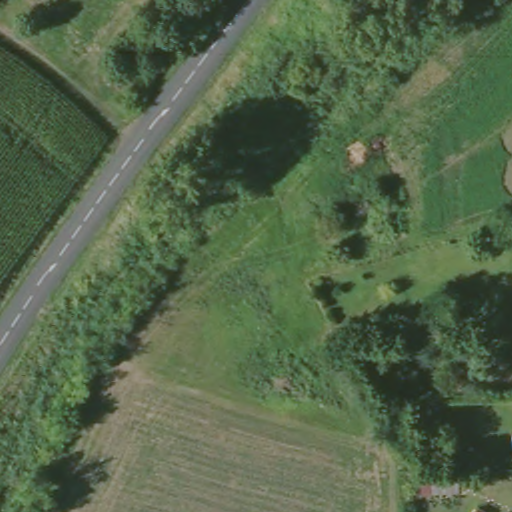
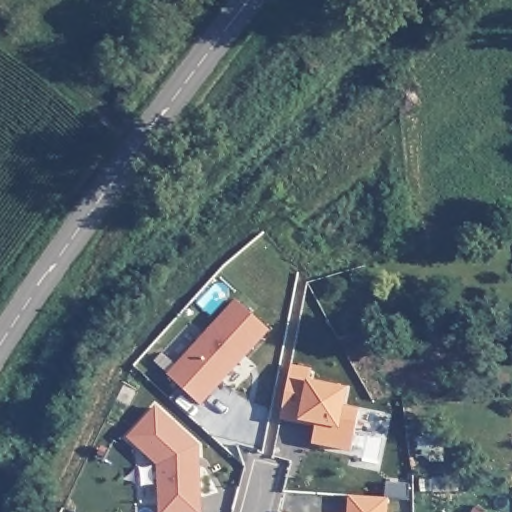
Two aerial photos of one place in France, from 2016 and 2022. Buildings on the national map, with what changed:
new [(235,299),(268,330),(200,405),(168,374),(235,299)]
unchanged [(441,333),(444,360),(430,361),(428,334),(441,333)]
unchanged [(456,378),(470,378),(471,394),(456,395),(456,378)]
new [(203,512),(158,512),(157,465),(127,437),(155,405),(198,444),(203,512)]
new [(347,512),(348,496),(389,498),(388,512),(347,512)]

